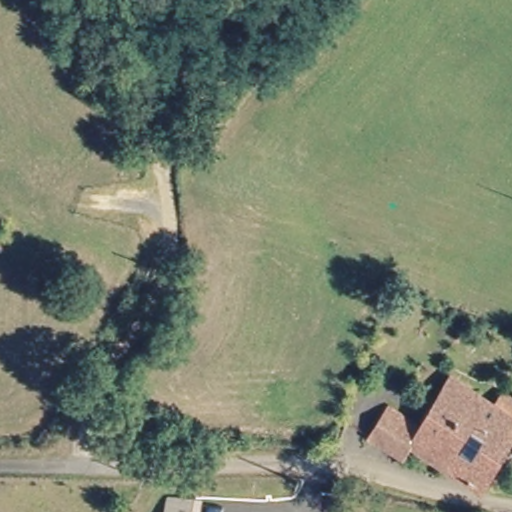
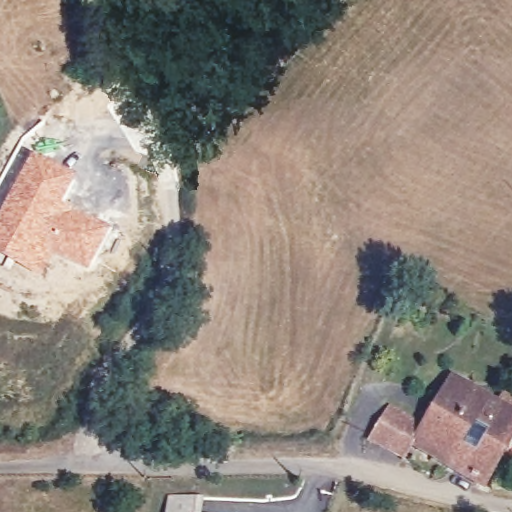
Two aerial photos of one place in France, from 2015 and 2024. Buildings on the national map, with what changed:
demolished [(212,79),(197,81),(200,95),(172,97),(161,51),(206,46),(212,79)]
new [(75,177),(61,205),(109,232),(85,276),(53,259),(40,281),(0,259),(0,211),(31,152),(75,177)]
unchanged [(449,392),(459,398),(471,383),(504,406),(512,395),(512,446),(483,487),(426,447),(416,440),(425,427),(449,392)]
unchanged [(416,440),(407,453),(391,450),(372,438),(394,405),(425,427),(416,440)]
unchanged [(207,494),(205,512),(171,512),(172,492),(207,494)]

